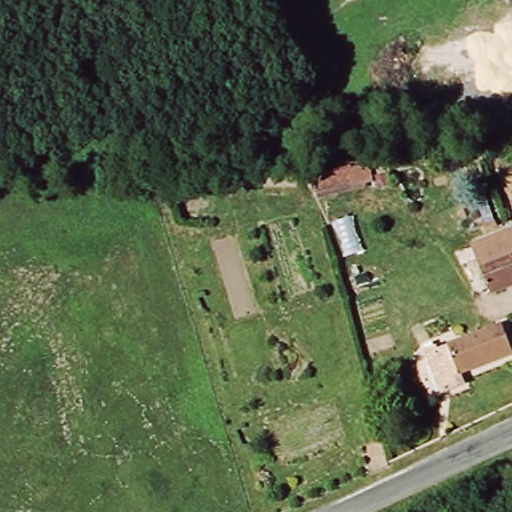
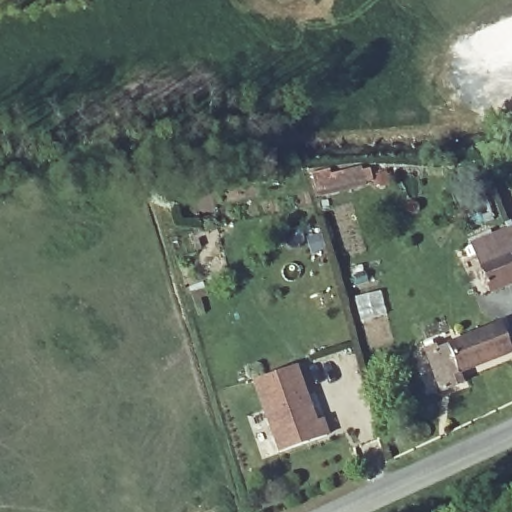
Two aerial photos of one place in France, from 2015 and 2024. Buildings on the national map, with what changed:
unchanged [(474,261),(467,243),(509,227),(512,235),(512,283),(486,292),(474,261)]
unchanged [(512,353),(512,358),(457,378),(461,387),(440,395),(421,350),(431,346),(434,352),(501,327),(512,353)]
new [(300,365),(316,418),(324,416),(330,436),(276,455),(252,382),(300,365)]

